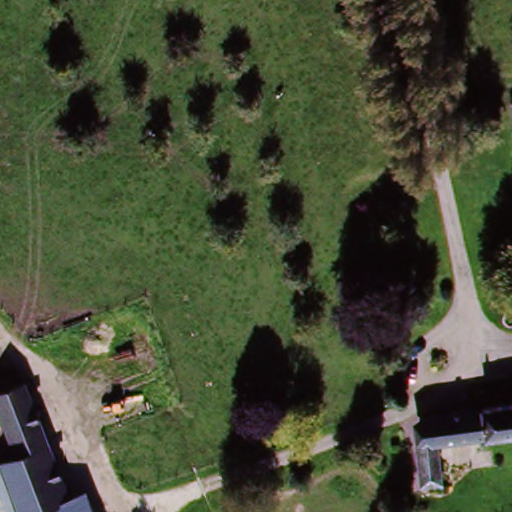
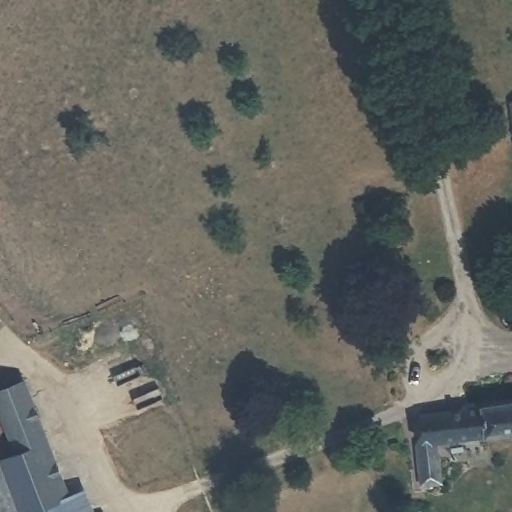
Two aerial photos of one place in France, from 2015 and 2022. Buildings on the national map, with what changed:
unchanged [(512,128),(509,105),(512,104),(512,128)]
unchanged [(0,406),(0,398),(30,389),(69,512),(16,512),(3,471),(20,464),(0,406)]
unchanged [(428,420),(512,409),(512,440),(431,452),(428,420)]
unchanged [(431,452),(436,495),(418,497),(413,454),(431,452)]
unchanged [(3,471),(16,512),(0,512),(0,471),(3,471)]
unchanged [(86,512),(90,511),(91,512),(86,512)]

